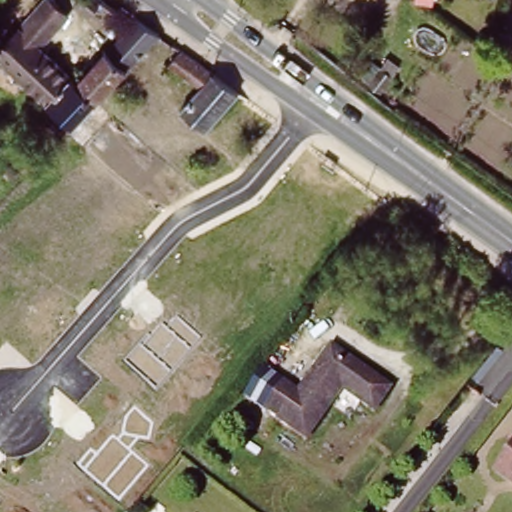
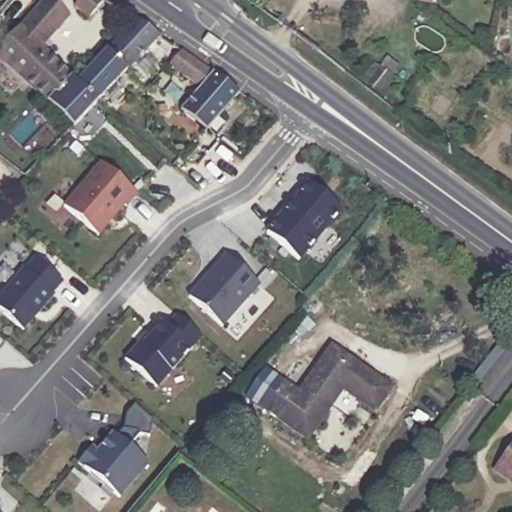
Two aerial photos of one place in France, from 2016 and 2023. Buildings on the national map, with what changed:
unchanged [(0,62),(0,45),(40,0),(56,0),(52,4),(64,16),(35,48),(66,78),(42,103),(0,62)]
unchanged [(74,6),(79,0),(100,0),(103,2),(89,17),(74,6)]
unchanged [(69,128),(67,126),(42,103),(66,78),(71,83),(129,25),(133,21),(155,36),(112,81),(69,128)]
unchanged [(238,88),(224,105),(207,127),(182,109),(200,85),(170,61),(182,46),(238,88)]
unchanged [(380,91),(369,81),(380,68),(392,77),(380,91)]
demolished [(257,130),(242,119),(257,101),(272,113),(257,130)]
new [(127,207),(123,205),(100,235),(62,206),(101,161),(137,195),(127,207)]
new [(309,182),(342,211),(299,260),(265,232),(309,182)]
new [(226,256),(260,286),(223,328),(189,298),(226,256)]
new [(64,283),(53,295),(55,297),(24,333),(0,312),(0,299),(35,258),(64,283)]
unchanged [(190,348),(192,350),(172,372),(169,369),(157,388),(124,360),(140,341),(142,344),(164,320),(170,326),(179,315),(202,337),(190,348)]
new [(300,396),(284,386),(283,387),(265,414),(244,398),(264,368),(298,390),(328,348),(332,350),(300,396)]
unchanged [(390,389),(375,412),(342,390),(307,442),(265,414),(284,386),(300,396),(332,350),(390,389)]
unchanged [(149,435),(136,433),(127,445),(148,464),(120,501),(75,465),(90,448),(97,451),(101,447),(112,434),(116,437),(119,435),(123,429),(125,417),(135,406),(150,422),(149,435)]
unchanged [(494,480),(486,474),(509,442),(512,444),(512,493),(494,480)]

